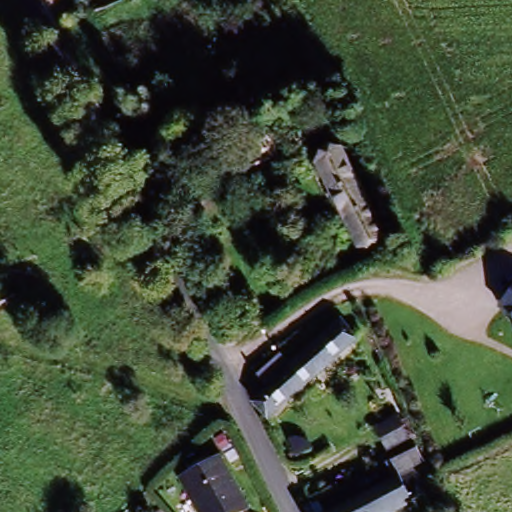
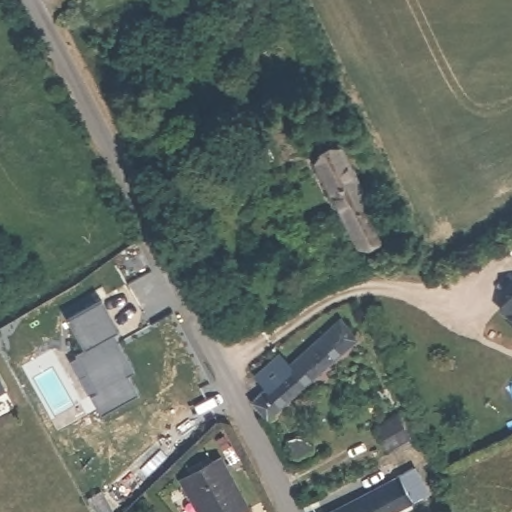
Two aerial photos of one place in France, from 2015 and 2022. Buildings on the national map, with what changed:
unchanged [(345,152),(385,252),(360,259),(317,164),(345,152)]
unchanged [(495,311),(512,291),(512,324),(495,311)]
new [(101,300),(119,331),(112,334),(134,372),(126,376),(137,396),(100,416),(90,397),(82,401),(74,385),(87,377),(75,353),(84,350),(66,318),(101,300)]
unchanged [(260,406),(274,397),(257,378),(283,356),(293,368),(355,316),(371,335),(277,414),(260,406)]
new [(0,396),(0,379),(7,392),(0,396)]
unchanged [(400,427),(380,436),(370,414),(390,405),(400,427)]
unchanged [(182,481),(220,463),(242,512),(196,512),(182,481)]
unchanged [(388,512),(318,512),(412,470),(424,496),(388,512)]

